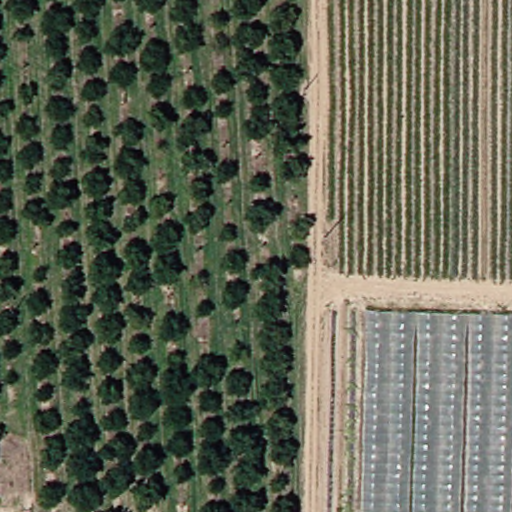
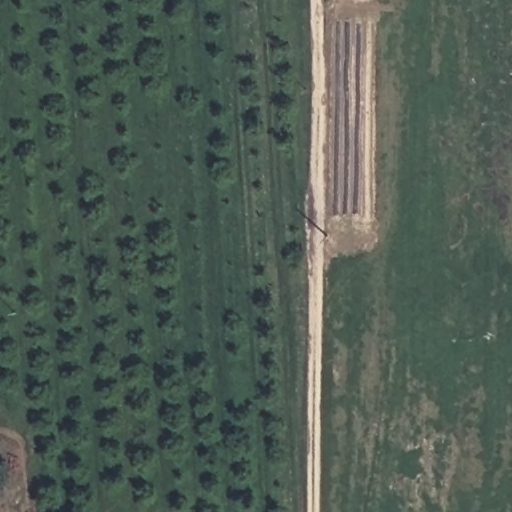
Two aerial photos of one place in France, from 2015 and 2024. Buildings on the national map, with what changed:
demolished [(361,313),(512,317),(512,512),(357,512),(361,313)]

